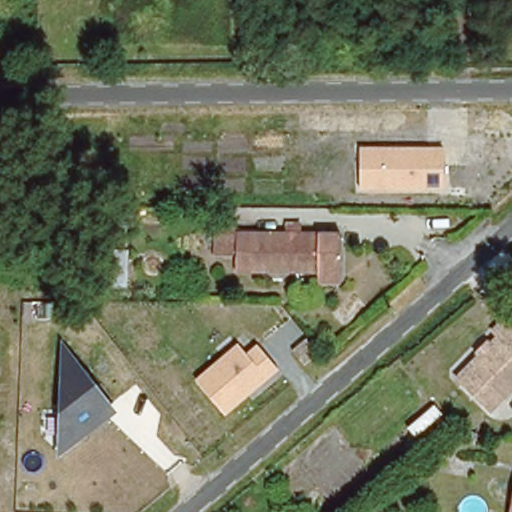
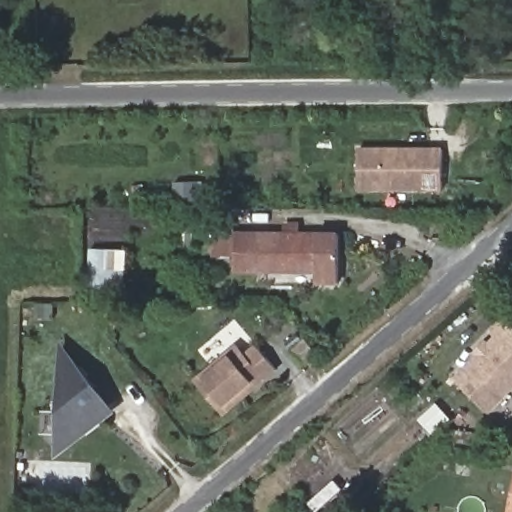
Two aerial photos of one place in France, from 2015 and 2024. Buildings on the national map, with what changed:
unchanged [(359,193),(360,149),(442,147),(445,191),(359,193)]
unchanged [(347,283),(322,285),(321,275),(236,278),(235,258),(215,260),(213,225),(237,224),(237,236),(280,234),(280,224),(302,222),(303,236),(345,234),(347,283)]
unchanged [(89,293),(89,252),(127,251),(125,290),(89,293)]
unchanged [(499,337),(494,333),(506,320),(512,326),(512,393),(509,396),(494,412),(460,381),(460,380),(499,337)]
unchanged [(57,456),(62,337),(118,413),(57,456)]
unchanged [(227,415),(196,378),(237,342),(246,352),(257,343),(278,370),(227,415)]
unchanged [(476,434),(476,436),(474,446),(445,442),(448,430),(455,430),(476,434)]
unchanged [(449,459),(446,471),(442,471),(445,457),(449,459)]

